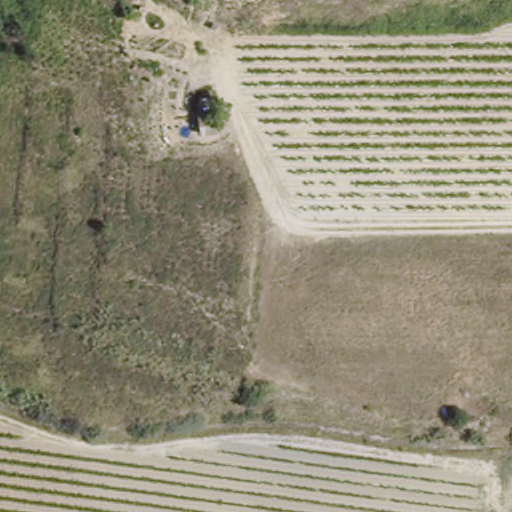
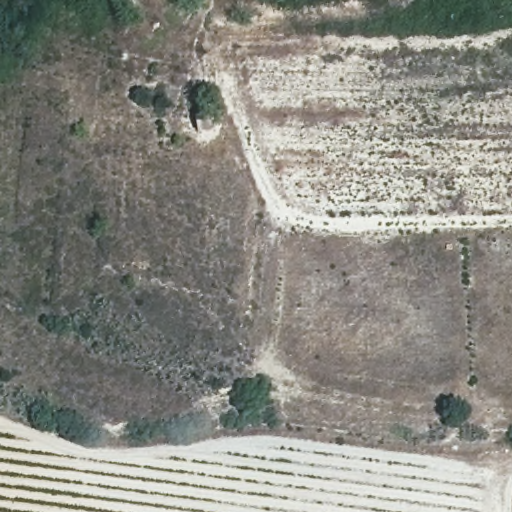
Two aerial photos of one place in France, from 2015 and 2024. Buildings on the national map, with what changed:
unchanged [(192,135),(191,110),(210,110),(212,135),(192,135)]

